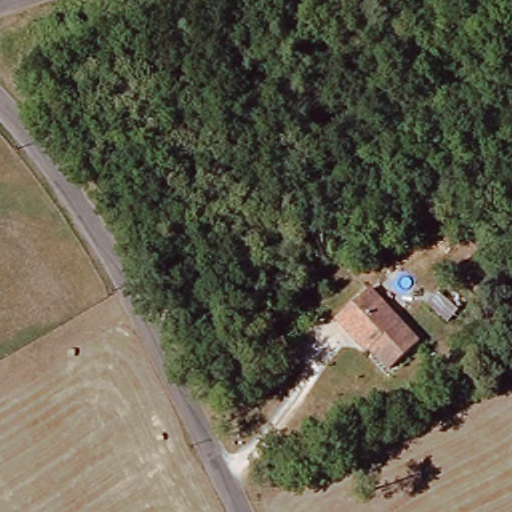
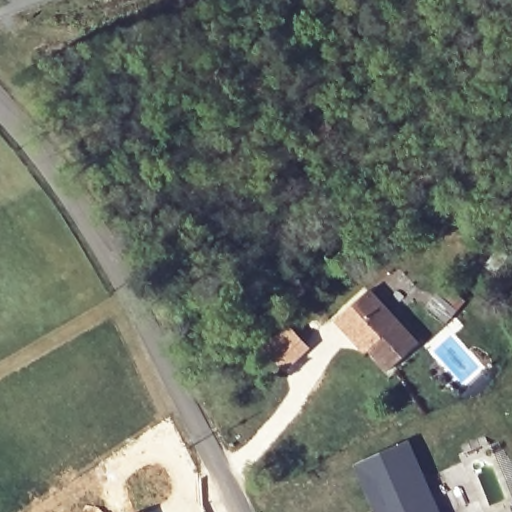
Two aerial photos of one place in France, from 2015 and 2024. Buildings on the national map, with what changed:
unchanged [(420,342),(392,370),(365,344),(357,343),(338,322),(370,291),(420,342)]
new [(440,512),(375,512),(354,465),(409,441),(440,512)]
new [(146,512),(142,512),(145,510),(146,512)]

